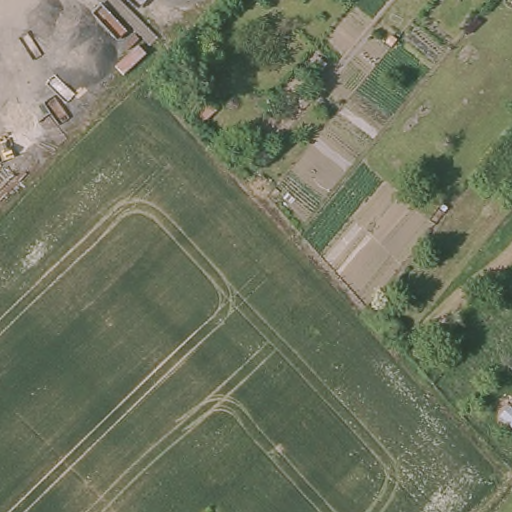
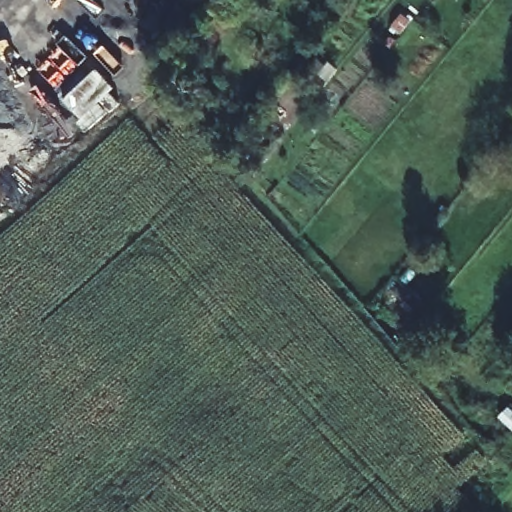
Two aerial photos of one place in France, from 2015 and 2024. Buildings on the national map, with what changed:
[]

